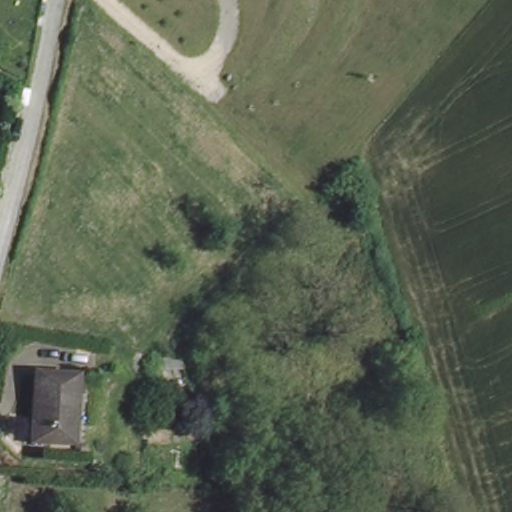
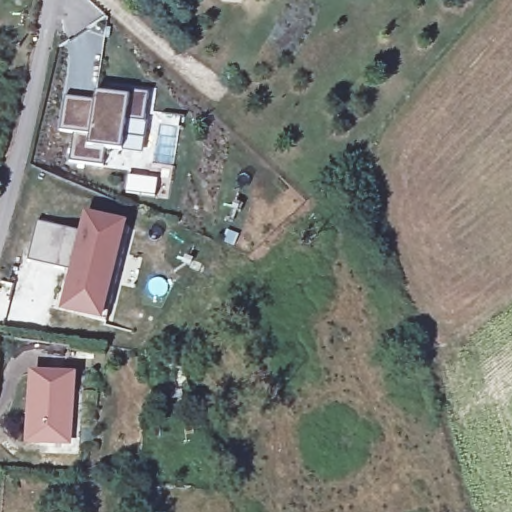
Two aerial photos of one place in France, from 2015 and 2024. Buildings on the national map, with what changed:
new [(100,101),(100,92),(116,94),(116,88),(133,90),(154,92),(150,122),(132,119),(128,150),(112,148),(110,165),(76,161),(79,133),(65,132),(70,97),(100,101)]
new [(27,262),(35,223),(77,233),(82,213),(125,223),(103,323),(58,311),(68,272),(27,262)]
unchanged [(61,445),(28,445),(31,376),(74,379),(72,413),(71,445),(61,445)]

